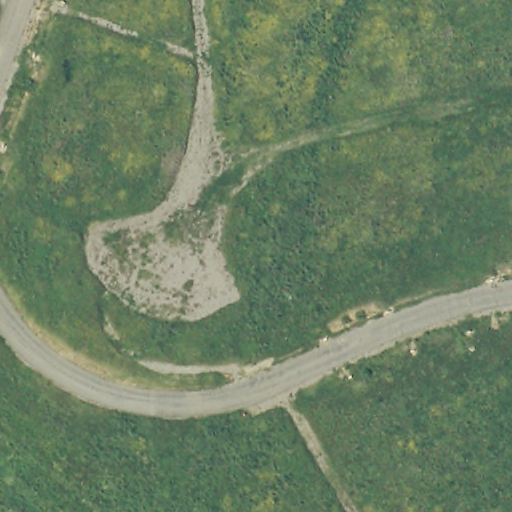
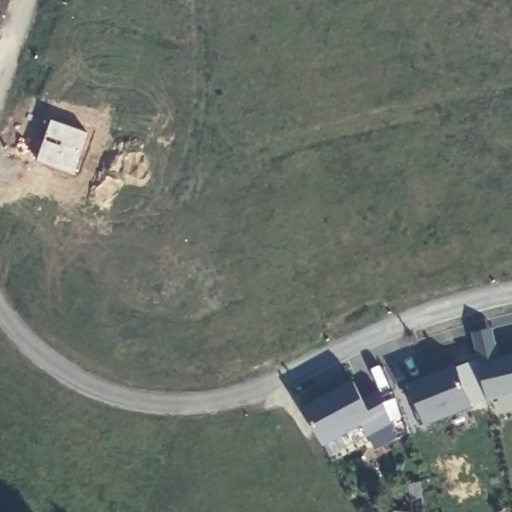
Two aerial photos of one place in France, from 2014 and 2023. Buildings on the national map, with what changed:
new [(473,334),(492,329),(500,357),(512,354),(512,396),(487,401),(473,334)]
new [(406,383),(454,364),(473,406),(425,425),(406,383)]
new [(367,435),(360,424),(322,445),(302,407),(351,382),(362,399),(377,392),(385,412),(390,425),(367,435)]

